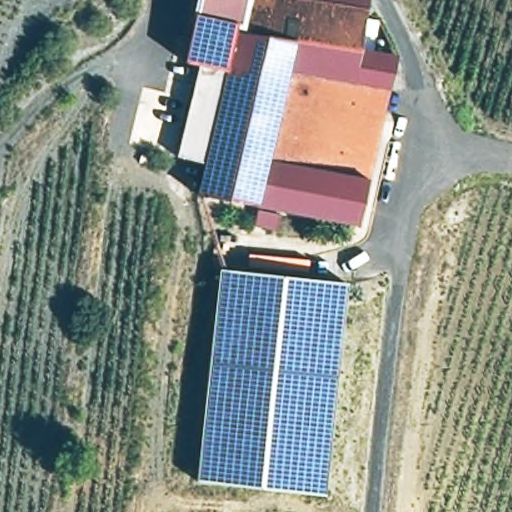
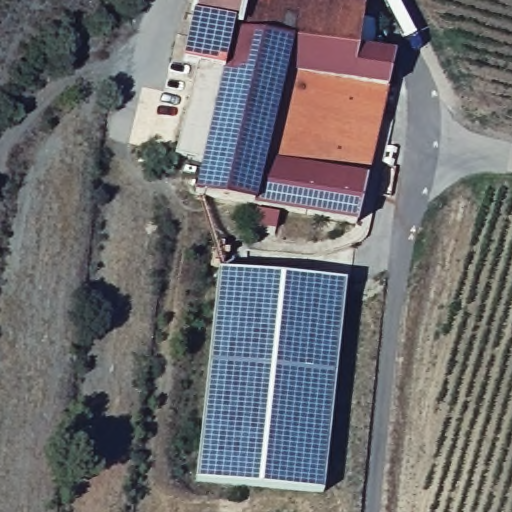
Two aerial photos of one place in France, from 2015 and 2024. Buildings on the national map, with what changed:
unchanged [(396,46),(359,225),(188,196),(197,157),(168,152),(178,115),(142,110),(147,84),(187,92),(191,62),(177,59),(188,12),(191,0),(368,0),(361,38),(396,46)]
unchanged [(346,278),(325,487),(193,478),(216,262),(346,278)]

